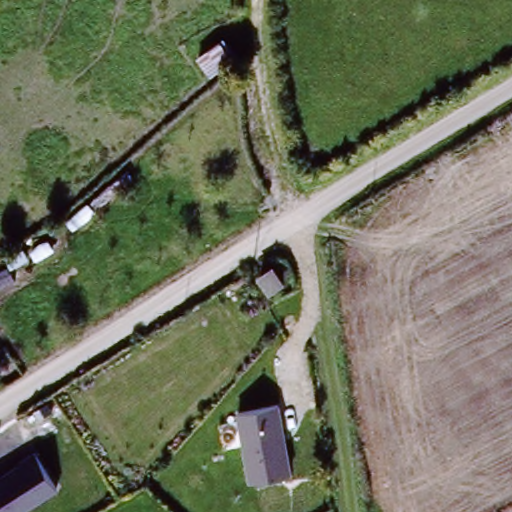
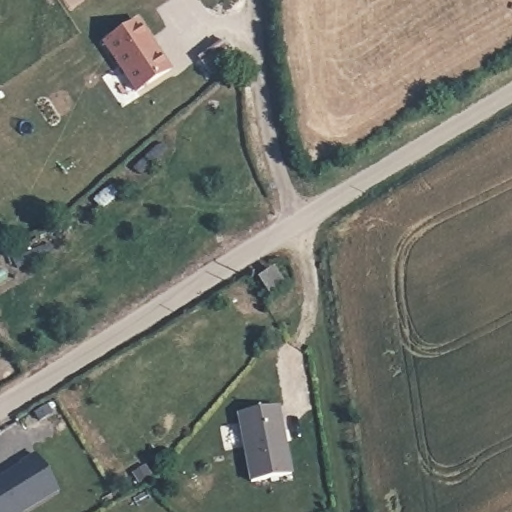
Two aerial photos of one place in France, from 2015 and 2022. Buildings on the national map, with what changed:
new [(138,92),(105,43),(139,21),(172,70),(138,92)]
unchanged [(232,55),(210,71),(198,54),(220,38),(232,55)]
unchanged [(272,267),(282,283),(270,291),(260,275),(272,267)]
unchanged [(237,410),(280,403),(292,473),(250,483),(237,410)]
unchanged [(21,512),(0,512),(0,475),(36,452),(58,490),(21,512)]

